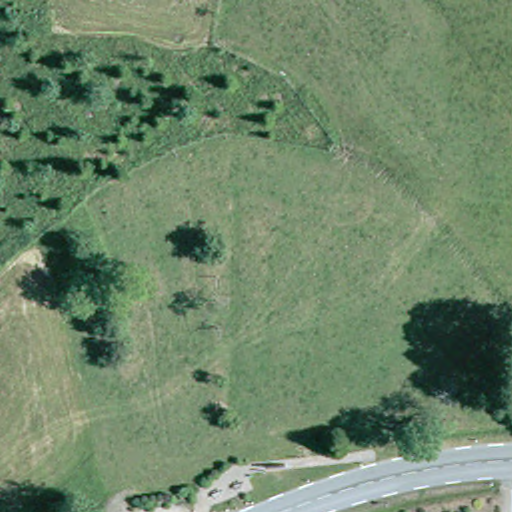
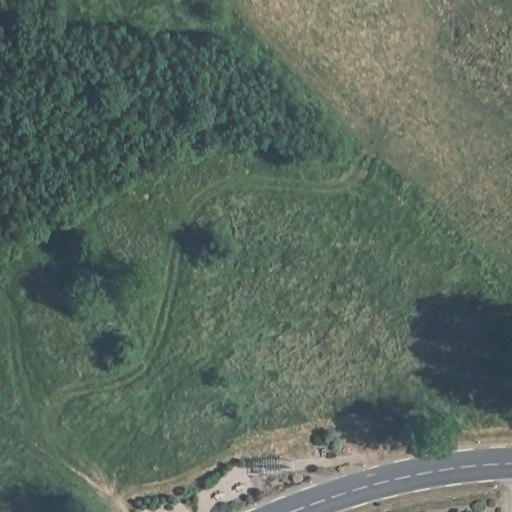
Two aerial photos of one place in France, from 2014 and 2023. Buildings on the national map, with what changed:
[]

